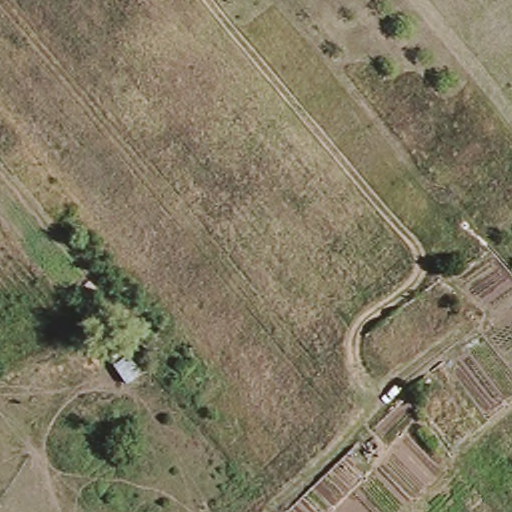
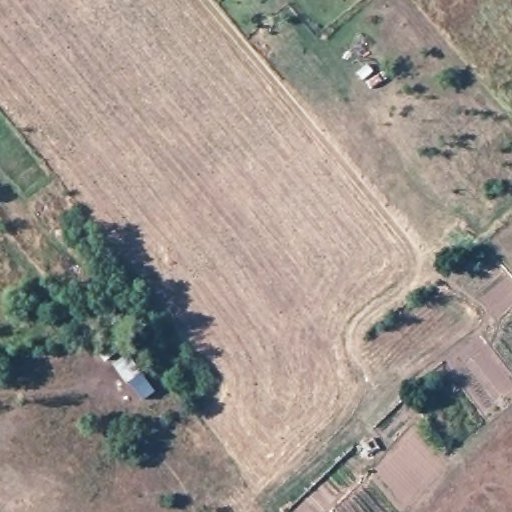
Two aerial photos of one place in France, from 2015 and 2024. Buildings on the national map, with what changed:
unchanged [(127,356),(141,376),(123,386),(110,367),(127,356)]

